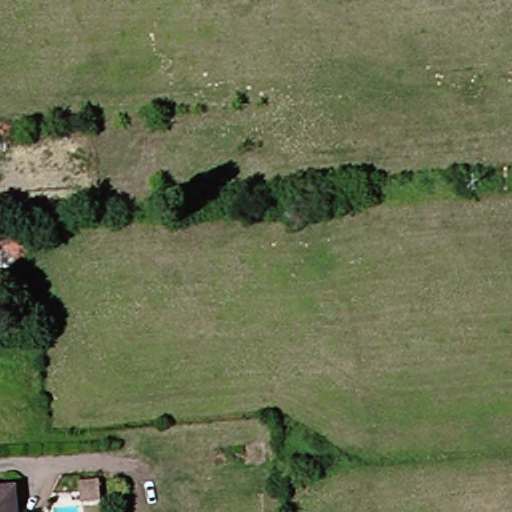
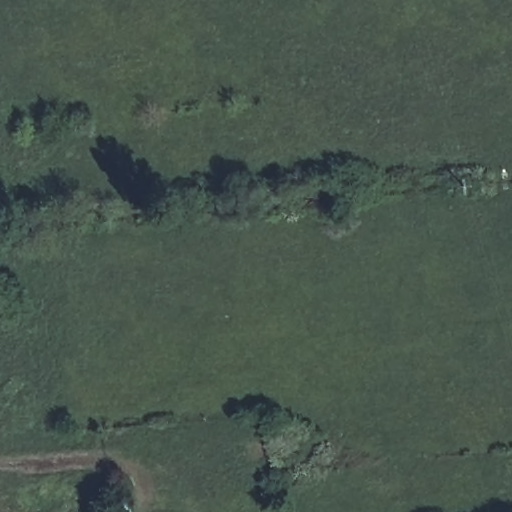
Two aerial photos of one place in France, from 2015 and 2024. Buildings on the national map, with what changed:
unchanged [(83,500),(83,483),(99,482),(100,499),(83,500)]
demolished [(0,490),(18,489),(20,512),(0,512),(0,490)]

